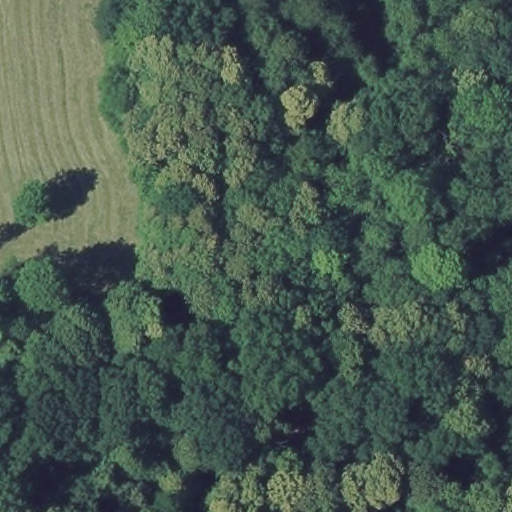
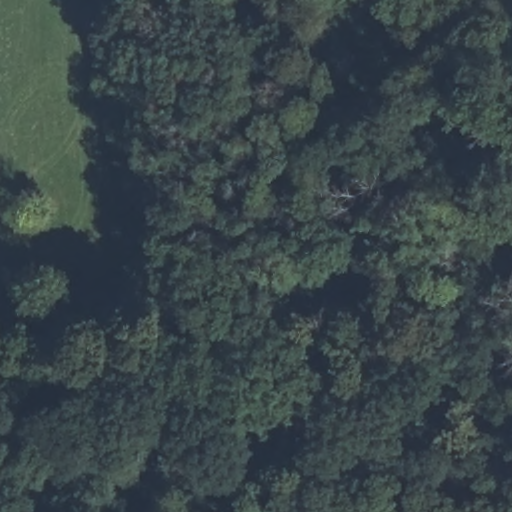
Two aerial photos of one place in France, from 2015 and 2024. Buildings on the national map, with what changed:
[]

